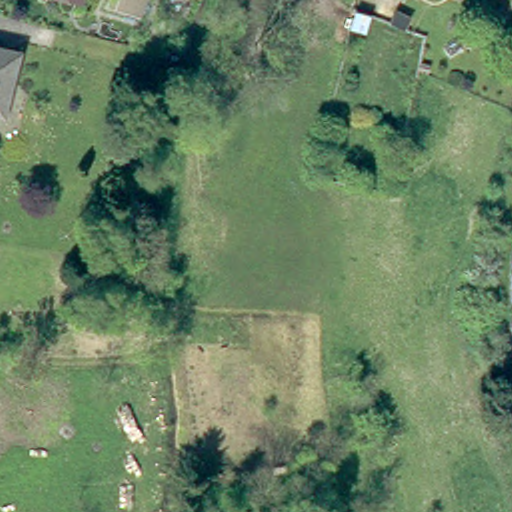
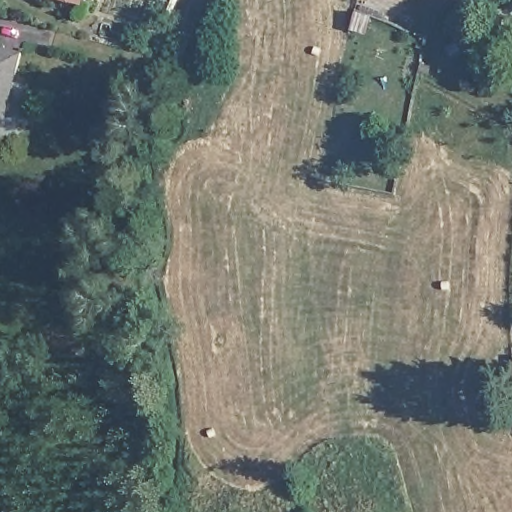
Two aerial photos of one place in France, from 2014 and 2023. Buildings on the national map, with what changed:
unchanged [(366,33),(352,29),(356,12),(371,16),(366,33)]
unchanged [(451,57),(446,47),(457,41),(462,50),(451,57)]
unchanged [(20,54),(4,117),(0,116),(0,49),(20,54)]

